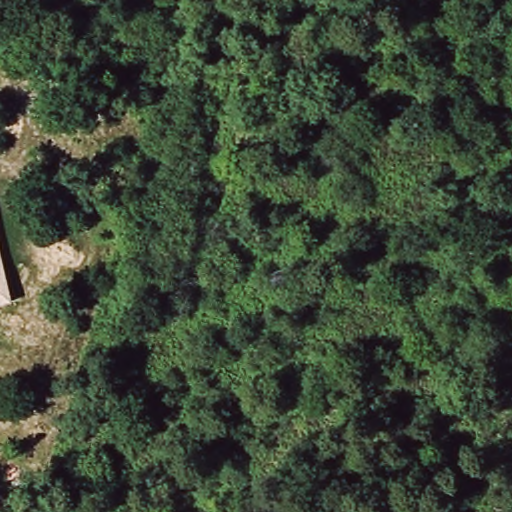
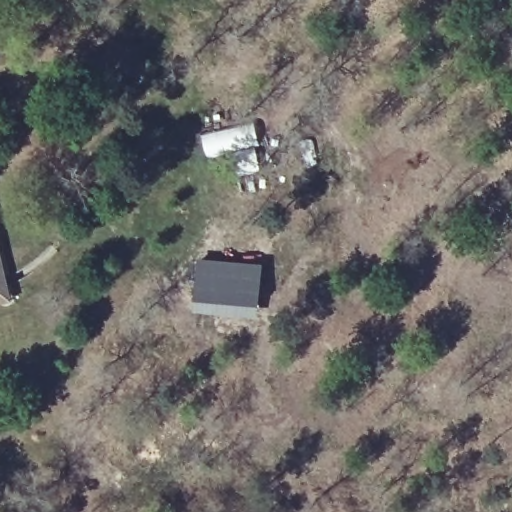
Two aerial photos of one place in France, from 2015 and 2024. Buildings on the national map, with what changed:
new [(256,146),(261,171),(238,175),(234,153),(256,146)]
unchanged [(12,303),(0,306),(0,254),(12,303)]
new [(196,258),(263,262),(258,306),(257,319),(192,312),(192,300),(196,258)]

